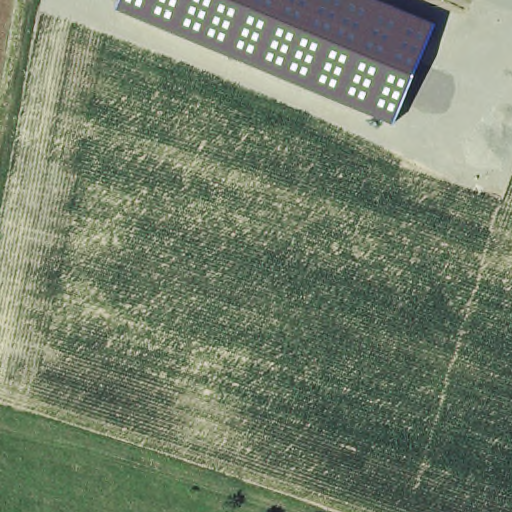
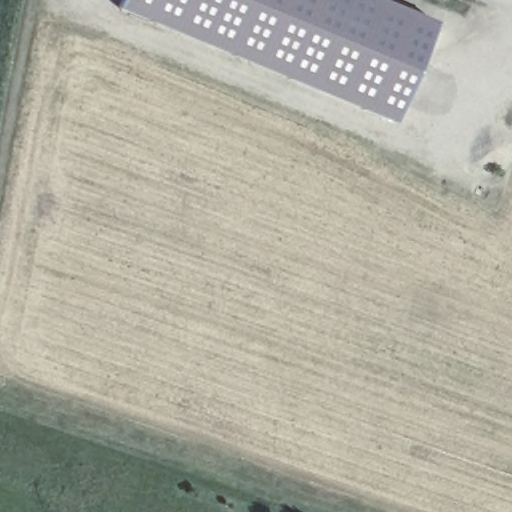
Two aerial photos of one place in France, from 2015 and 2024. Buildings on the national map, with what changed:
unchanged [(395,125),(117,8),(121,0),(385,0),(437,22),(395,125)]

